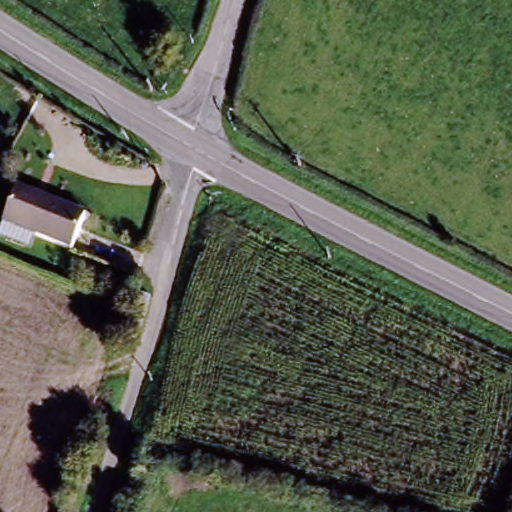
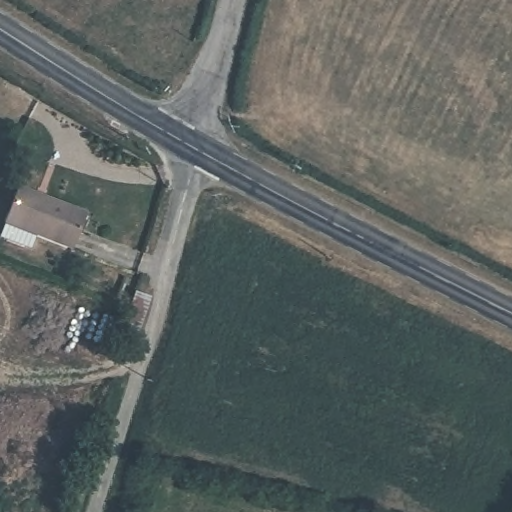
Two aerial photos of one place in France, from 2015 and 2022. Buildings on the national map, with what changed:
unchanged [(71,246),(35,231),(30,246),(0,233),(0,232),(19,182),(85,209),(71,246)]

